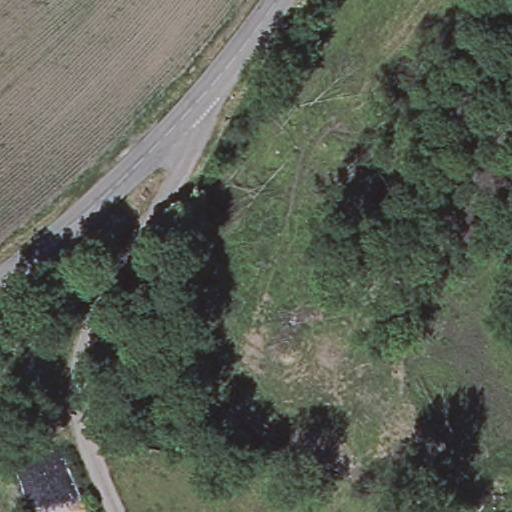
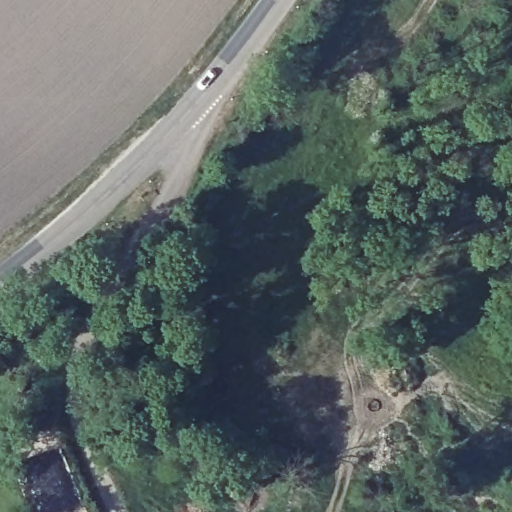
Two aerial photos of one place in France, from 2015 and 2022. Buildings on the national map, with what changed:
unchanged [(32,305),(54,318),(24,355),(6,343),(32,305)]

